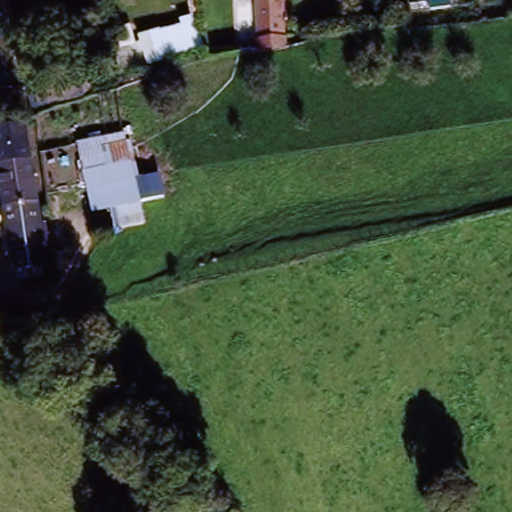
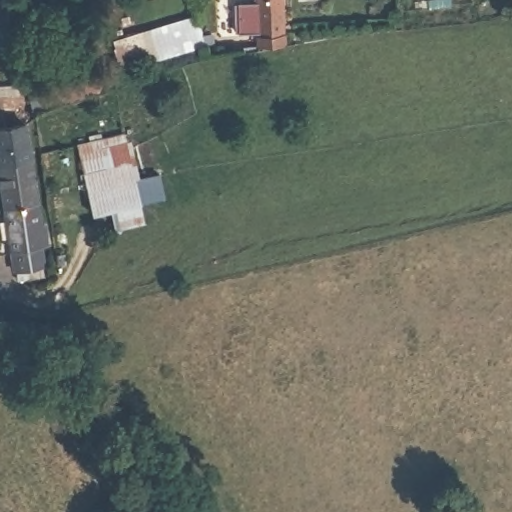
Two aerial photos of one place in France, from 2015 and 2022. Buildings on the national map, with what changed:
unchanged [(259,49),(258,38),(256,0),(281,0),(283,37),(284,48),(259,49)]
unchanged [(26,127),(31,163),(0,167),(0,131),(26,127)]
unchanged [(76,144),(129,132),(143,209),(94,221),(76,144)]
unchanged [(0,184),(0,167),(31,163),(37,206),(4,210),(0,184)]
unchanged [(13,274),(10,251),(4,210),(37,206),(39,227),(45,226),(48,246),(40,247),(44,269),(13,274)]

